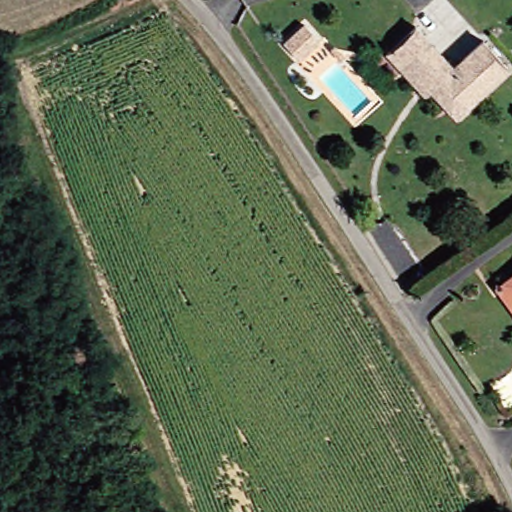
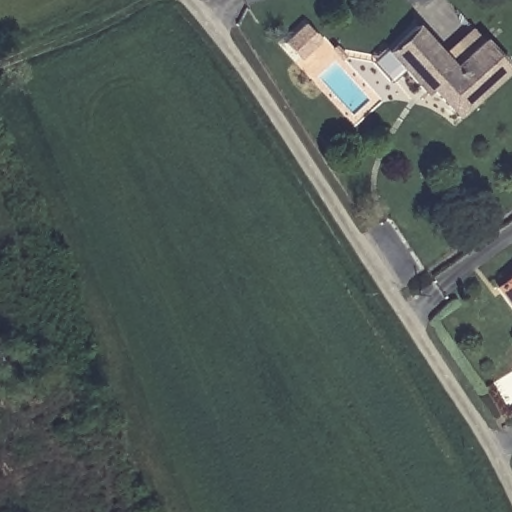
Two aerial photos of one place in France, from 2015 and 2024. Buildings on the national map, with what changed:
unchanged [(281,39),(302,21),(318,37),(296,57),(281,39)]
unchanged [(438,108),(421,88),(413,94),(405,86),(377,50),(387,41),(407,24),(444,66),(478,40),(503,71),(471,97),(448,118),(438,108)]
unchanged [(498,280),(512,271),(512,320),(490,286),(498,280)]

